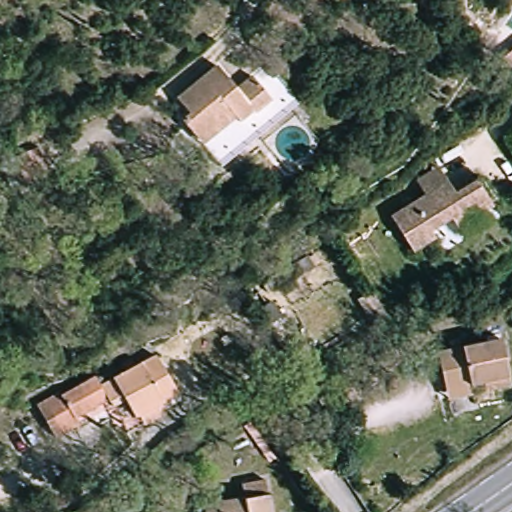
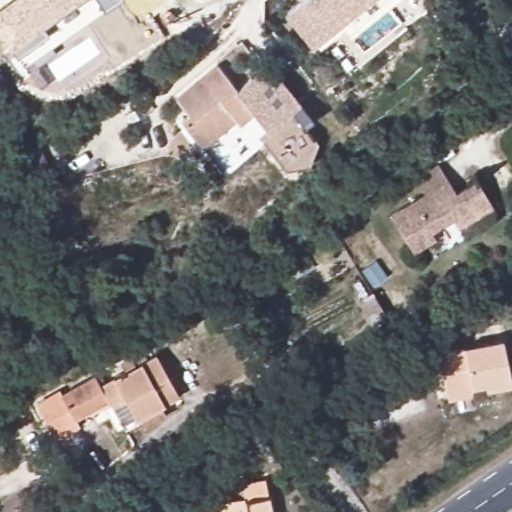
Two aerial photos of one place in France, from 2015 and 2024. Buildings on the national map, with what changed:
new [(22,65),(14,53),(0,33),(0,5),(8,0),(113,0),(103,7),(22,65)]
new [(312,48),(284,14),(300,1),(299,0),(370,0),(312,48)]
unchanged [(217,66),(236,90),(266,65),(298,103),(219,168),(182,121),(190,115),(176,99),(217,66)]
new [(259,136),(291,109),(317,139),(308,161),(284,166),(259,136)]
unchanged [(40,147),(51,174),(12,191),(0,164),(40,147)]
unchanged [(416,185),(439,171),(448,186),(456,198),(477,186),(492,211),(458,232),(452,223),(431,236),(435,243),(413,257),(391,221),(425,200),(416,185)]
unchanged [(499,221),(443,256),(435,243),(431,236),(452,223),(458,232),(492,211),(499,221)]
unchanged [(272,292),(265,280),(308,256),(315,268),(272,292)]
unchanged [(388,316),(372,325),(357,300),(372,291),(388,316)]
unchanged [(283,316),(268,326),(257,311),(272,301),(283,316)]
unchanged [(447,398),(446,390),(438,352),(502,339),(512,386),(486,392),(484,382),(471,385),(472,392),(447,398)]
unchanged [(139,410),(135,413),(122,391),(110,398),(108,394),(75,413),(79,419),(55,433),(37,400),(60,387),(62,391),(95,372),(100,382),(126,368),(122,360),(132,355),(135,363),(156,351),(177,390),(160,399),(166,409),(145,420),(139,410)]
unchanged [(249,494),(246,479),(270,474),(273,490),(272,490),(276,512),(210,512),(208,501),(249,494)]

